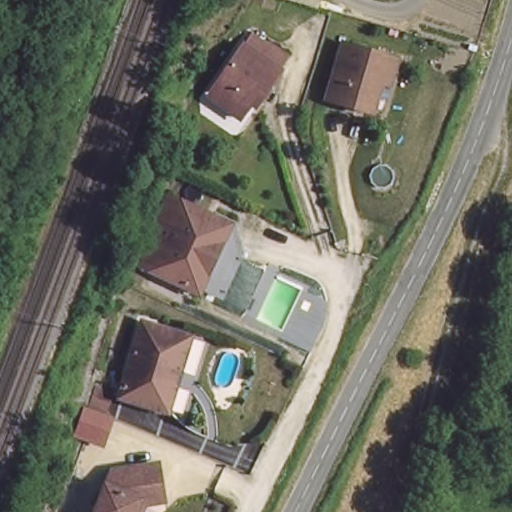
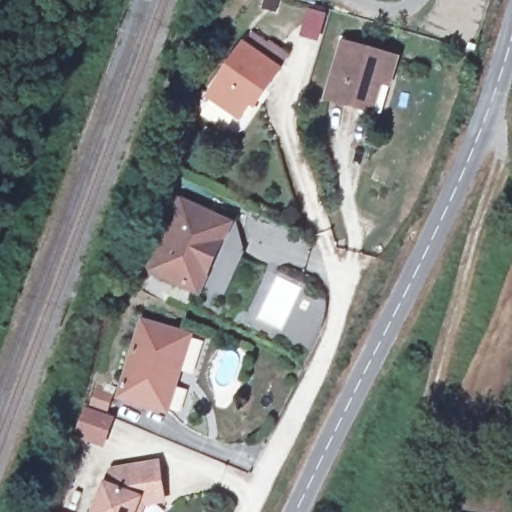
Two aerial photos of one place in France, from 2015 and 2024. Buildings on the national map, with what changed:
unchanged [(254,93),(234,122),(203,102),(235,54),(244,40),(283,64),(275,76),(261,98),(254,93)]
unchanged [(352,107),(322,100),(339,42),(392,57),(388,72),(382,78),(380,77),(370,112),(352,107)]
unchanged [(158,217),(167,222),(167,220),(176,199),(223,221),(215,238),(213,243),(192,288),(137,262),(158,217)]
unchanged [(190,327),(171,397),(127,384),(147,312),(190,327)]
unchanged [(99,397),(102,390),(106,379),(120,385),(116,395),(113,402),(99,397)]
unchanged [(154,502),(137,507),(135,512),(88,512),(97,490),(103,476),(118,472),(148,467),(154,502)]

